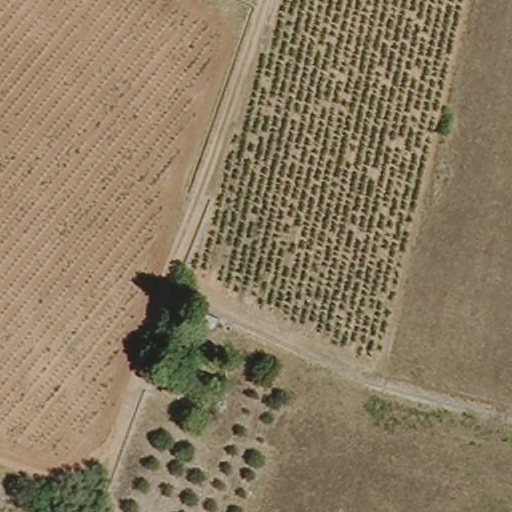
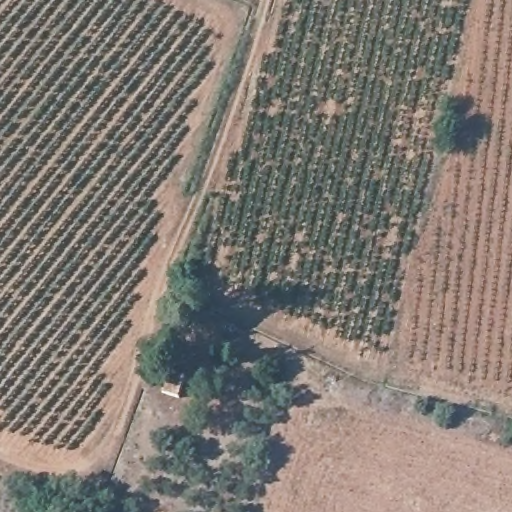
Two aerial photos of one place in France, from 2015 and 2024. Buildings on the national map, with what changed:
unchanged [(215,314),(211,332),(185,325),(192,308),(215,314)]

